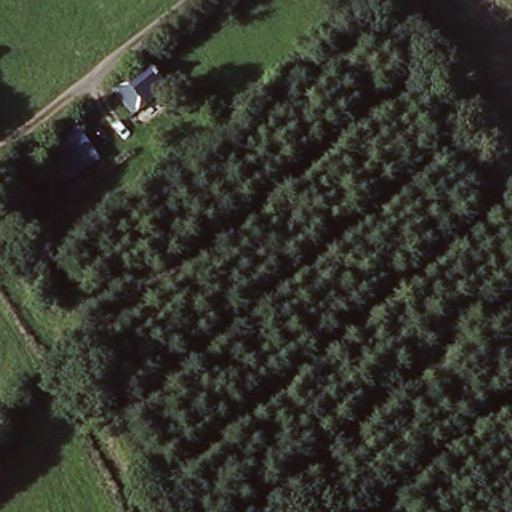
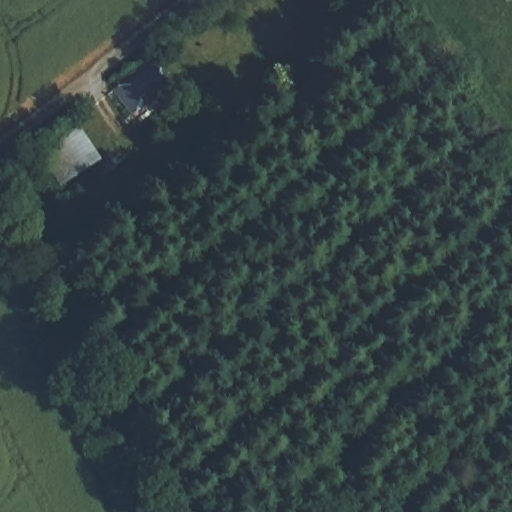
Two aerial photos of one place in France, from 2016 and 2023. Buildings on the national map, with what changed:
unchanged [(147,61),(162,82),(129,108),(112,88),(147,61)]
unchanged [(74,129),(95,157),(57,184),(38,157),(74,129)]

